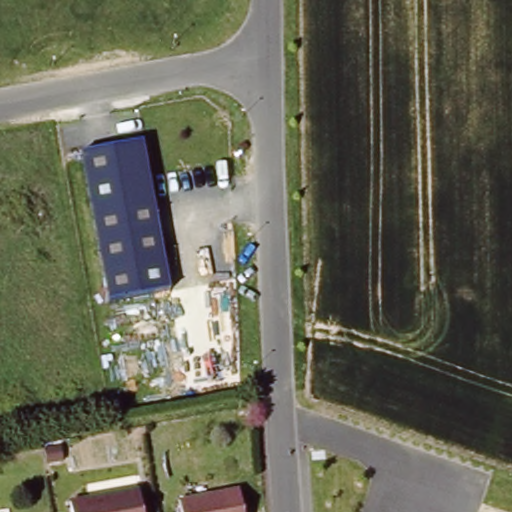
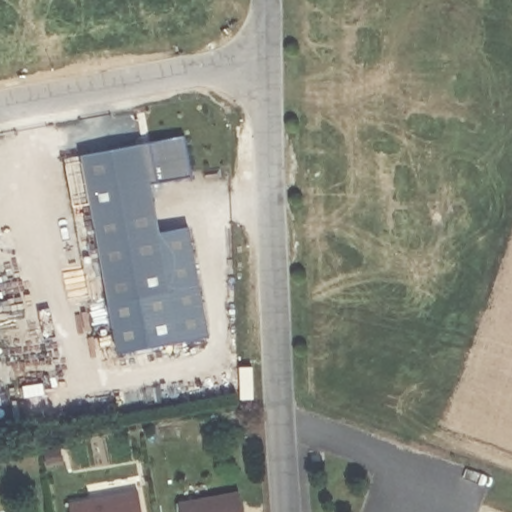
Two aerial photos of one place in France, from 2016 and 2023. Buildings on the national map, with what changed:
new [(158,183),(149,141),(186,134),(193,175),(158,183)]
unchanged [(143,140),(172,292),(108,302),(81,151),(143,140)]
new [(208,335),(118,351),(108,302),(172,292),(160,230),(189,226),(208,335)]
unchanged [(72,512),(72,509),(140,497),(143,512),(72,512)]
unchanged [(245,512),(181,512),(181,511),(243,501),(245,512)]

